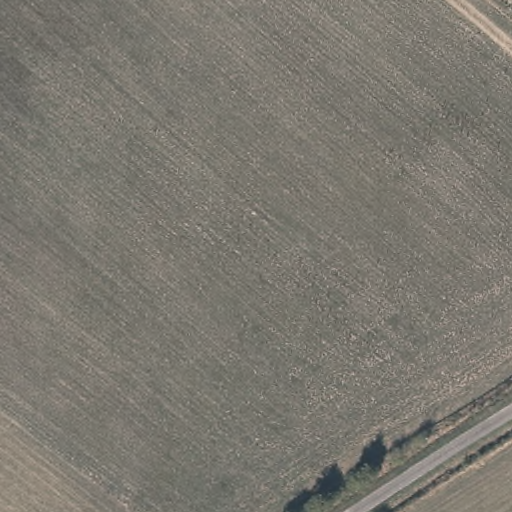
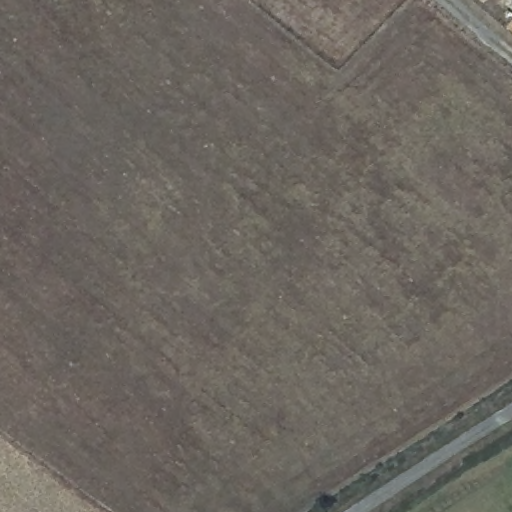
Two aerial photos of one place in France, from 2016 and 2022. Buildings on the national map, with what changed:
[]

